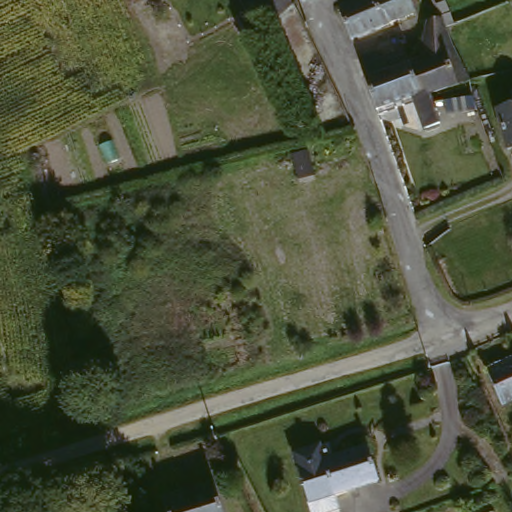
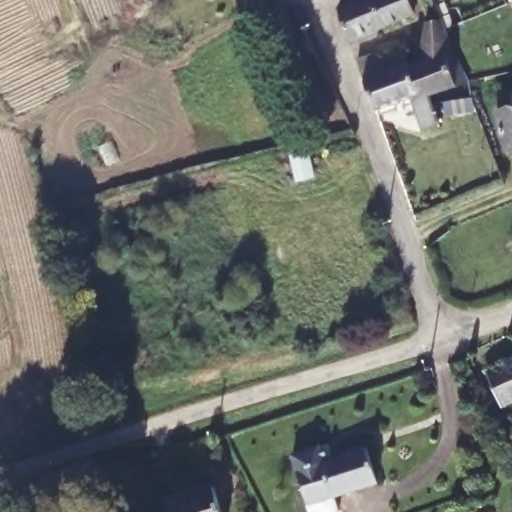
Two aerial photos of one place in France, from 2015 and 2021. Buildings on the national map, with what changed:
unchanged [(350,0),(375,0),(383,23),(347,37),(335,6),(350,0)]
unchanged [(411,0),(415,12),(383,23),(375,0),(411,0)]
unchanged [(470,41),(458,45),(445,9),(441,0),(452,0),(464,27),(470,41)]
unchanged [(423,126),(414,99),(412,93),(377,105),(358,53),(378,45),(386,68),(405,62),(419,57),(433,53),(435,15),(445,9),(458,45),(471,80),(431,93),(440,121),(423,126)]
unchanged [(512,100),(512,107),(511,100),(512,100)]
unchanged [(512,107),(512,142),(503,110),(512,107)]
unchanged [(304,170),(306,175),(291,179),(290,173),(283,155),(298,151),(304,170)]
unchanged [(488,373),(512,360),(512,399),(502,404),(488,373)]
unchanged [(298,442),(327,436),(330,450),(377,441),(386,479),(339,489),(342,501),(312,508),(298,442)]
unchanged [(169,499),(207,483),(218,477),(232,512),(174,512),(169,499)]

